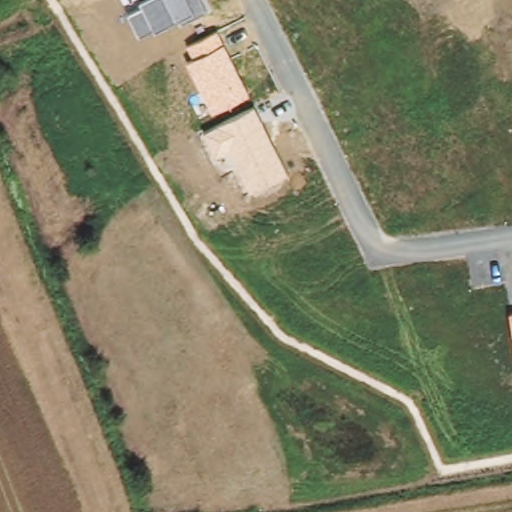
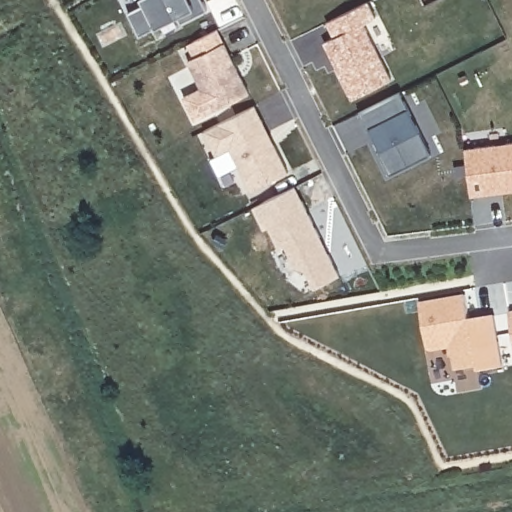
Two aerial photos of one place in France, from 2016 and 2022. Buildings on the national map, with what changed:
unchanged [(127,13),(144,5),(141,0),(201,0),(207,11),(181,24),(178,18),(155,28),(141,37),(127,13)]
new [(376,17),(362,24),(391,80),(352,100),(323,43),(333,37),(326,23),(367,2),(376,17)]
unchanged [(187,61),(195,58),(188,45),(217,30),(224,45),(249,95),(212,112),(187,61)]
new [(369,129),(367,130),(358,112),(400,92),(431,154),(389,175),(377,150),(373,142),(375,141),(369,129)]
unchanged [(256,107),(287,174),(250,191),(230,149),(217,155),(205,131),(256,107)]
new [(512,143),(512,192),(470,197),(463,149),(512,143)]
new [(338,275),(314,287),(305,269),(295,266),(284,245),(278,247),(267,226),(263,229),(252,207),(292,187),(294,186),(302,200),(320,236),(328,255),(338,275)]
new [(466,294),(470,319),(496,315),(502,368),(477,371),(476,366),(455,370),(452,357),(450,357),(449,349),(432,352),(427,349),(420,302),(466,294)]
unchanged [(510,313),(512,313),(512,327),(510,313)]

